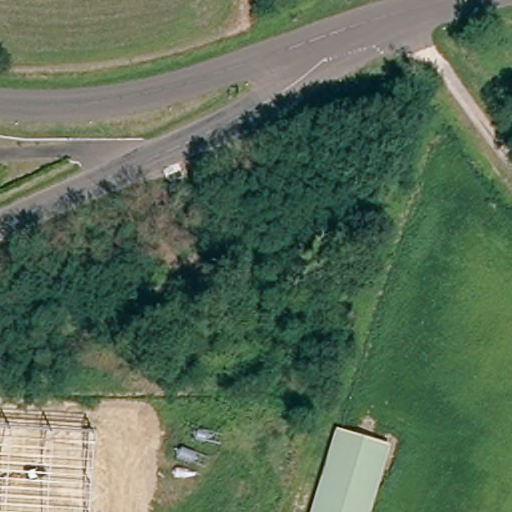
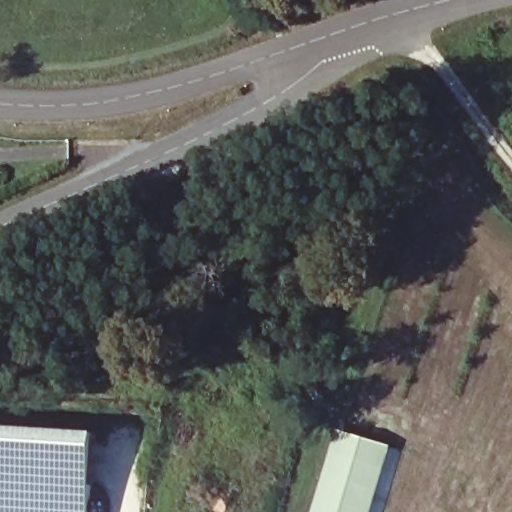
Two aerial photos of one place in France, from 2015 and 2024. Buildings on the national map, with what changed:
unchanged [(348,425),(397,445),(372,512),(316,512),(348,425)]
new [(91,512),(0,512),(0,427),(96,433),(91,512)]

